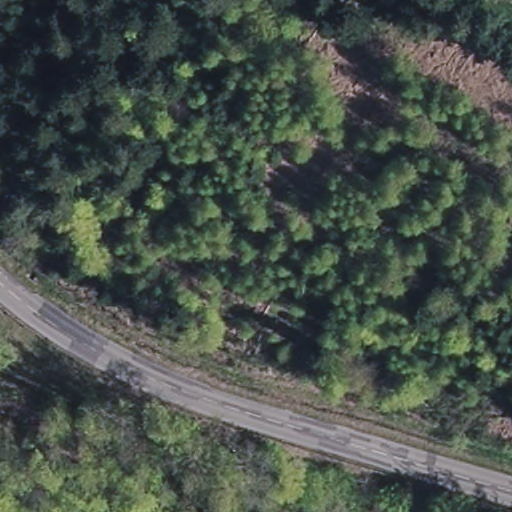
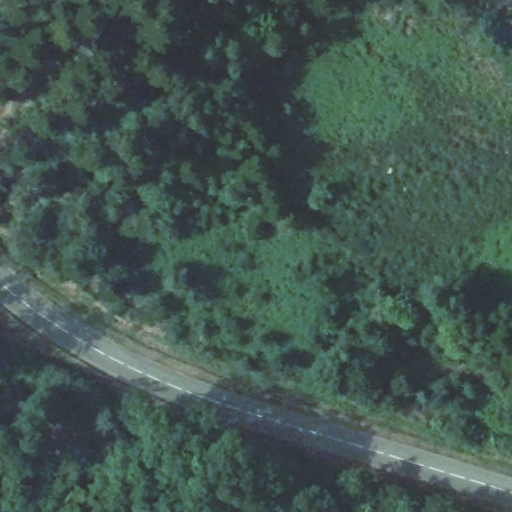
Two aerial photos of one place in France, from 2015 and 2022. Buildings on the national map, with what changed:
[]

